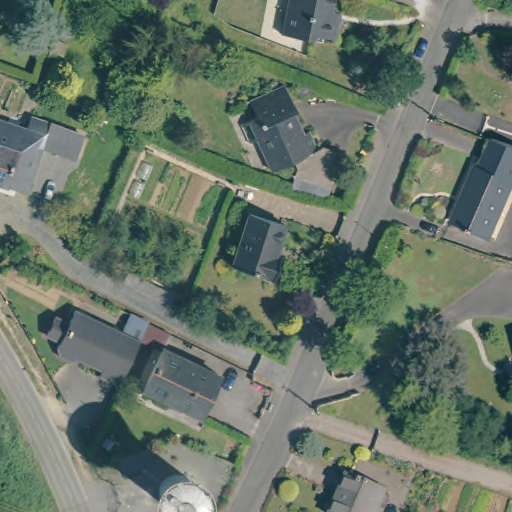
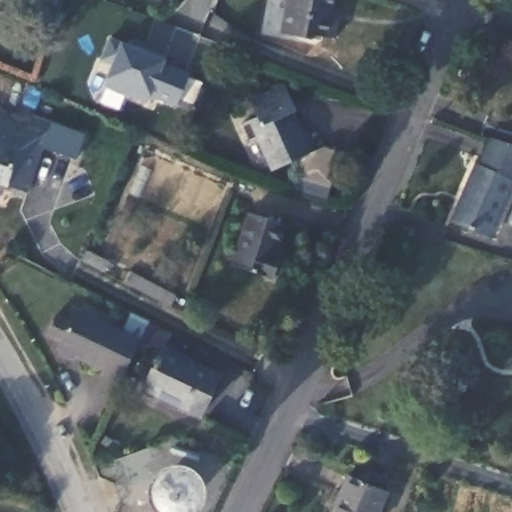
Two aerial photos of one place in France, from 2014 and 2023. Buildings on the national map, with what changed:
unchanged [(333,38),(318,35),(311,38),(280,33),(286,0),(333,0),(330,11),(338,13),(337,18),(333,38)]
new [(110,37),(142,50),(143,46),(166,55),(163,62),(190,73),(177,104),(150,94),(148,101),(105,84),(113,63),(102,58),(110,37)]
unchanged [(333,188),(294,176),(298,166),(295,159),(270,170),(256,138),(249,141),(241,123),(256,116),(249,99),(283,84),(291,103),(285,106),(298,136),(309,131),(317,150),(322,146),(344,155),(333,188)]
unchanged [(0,121),(30,129),(32,120),(47,124),(78,133),(72,156),(41,148),(29,192),(0,184),(0,121)]
unchanged [(486,235),(447,218),(472,161),(476,163),(488,135),(512,143),(512,178),(511,178),(486,235)]
unchanged [(248,214),(283,224),(273,254),(279,256),(271,277),(232,265),(248,214)]
unchanged [(100,374),(104,365),(78,355),(71,357),(59,352),(57,346),(58,342),(44,336),(53,317),(66,323),(72,310),(120,329),(128,309),(145,318),(138,337),(120,382),(100,374)]
unchanged [(161,349),(221,372),(204,415),(145,391),(161,349)]
unchanged [(149,471),(144,478),(121,485),(116,470),(146,460),(149,471)]
unchanged [(349,473),(387,487),(377,512),(334,512),(349,473)]

